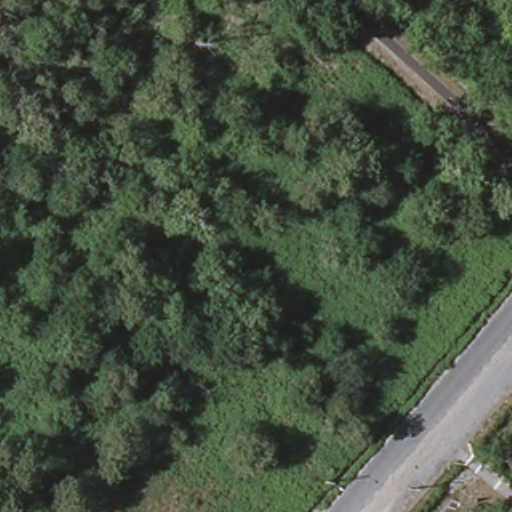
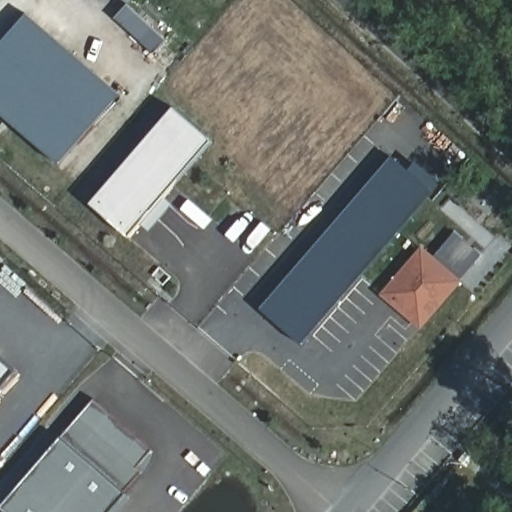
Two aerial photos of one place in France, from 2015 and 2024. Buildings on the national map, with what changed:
new [(0,114),(0,46),(29,14),(121,95),(60,166),(0,114)]
new [(151,232),(142,224),(130,237),(92,203),(174,109),(214,141),(164,196),(175,205),(151,232)]
new [(301,345),(261,310),(391,157),(409,171),(415,162),(442,183),(301,345)]
new [(380,295),(422,247),(434,257),(454,232),(482,255),(461,280),(463,282),(421,331),(380,295)]
new [(0,389),(0,361),(14,373),(0,389)]
new [(126,492),(134,498),(122,512),(7,512),(2,508),(63,438),(95,400),(156,451),(155,458),(150,468),(144,476),(141,473),(126,492)]

